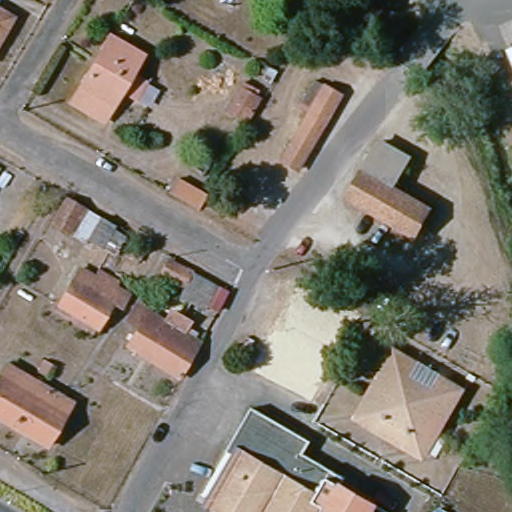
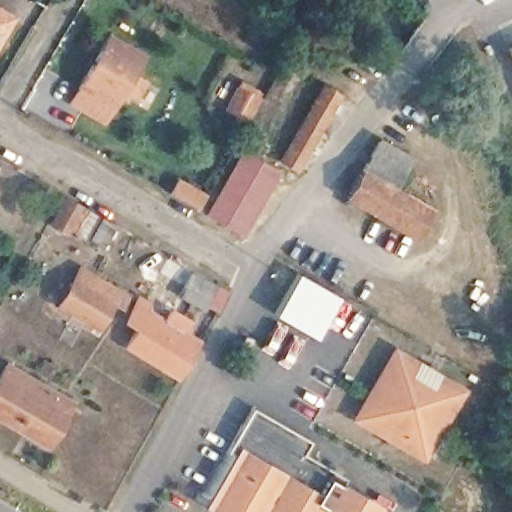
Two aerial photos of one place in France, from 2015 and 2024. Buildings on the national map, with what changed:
unchanged [(0,31),(0,12),(8,17),(0,31)]
unchanged [(122,110),(108,101),(94,125),(62,106),(100,41),(132,60),(118,84),(133,92),(122,110)]
unchanged [(512,52),(512,88),(499,58),(512,52)]
unchanged [(317,134),(298,167),(283,158),(324,85),(330,74),(343,81),(336,92),(339,94),(317,134)]
unchanged [(254,96),(240,120),(221,109),(235,85),(254,96)]
unchanged [(428,117),(404,157),(386,147),(409,106),(428,117)]
new [(242,146),(284,171),(246,237),(204,214),(242,146)]
unchanged [(422,192),(425,187),(440,197),(429,217),(414,244),(364,215),(349,207),(381,152),(406,166),(390,194),(400,200),(409,185),(422,192)]
unchanged [(188,212),(160,195),(169,180),(197,197),(188,212)]
unchanged [(115,227),(101,252),(57,227),(72,202),(115,227)]
unchanged [(211,291),(199,311),(154,285),(166,264),(211,291)]
unchanged [(47,308),(71,269),(88,280),(89,277),(116,293),(114,297),(120,301),(113,312),(103,307),(88,332),(47,308)]
new [(297,272),(339,296),(315,338),(271,314),(297,272)]
unchanged [(170,382),(119,351),(130,332),(117,325),(130,302),(141,308),(138,315),(156,325),(162,315),(180,325),(175,335),(191,345),(170,382)]
unchanged [(406,372),(398,386),(430,404),(438,390),(453,398),(418,461),(370,433),(356,425),(391,363),(406,372)]
unchanged [(65,406),(41,449),(0,425),(0,372),(2,368),(65,406)]
unchanged [(259,411),(318,444),(305,467),(331,482),(333,477),(384,506),(381,512),(236,512),(210,497),(259,411)]

